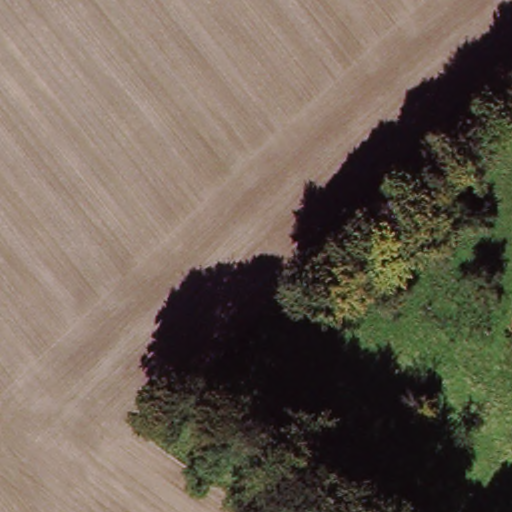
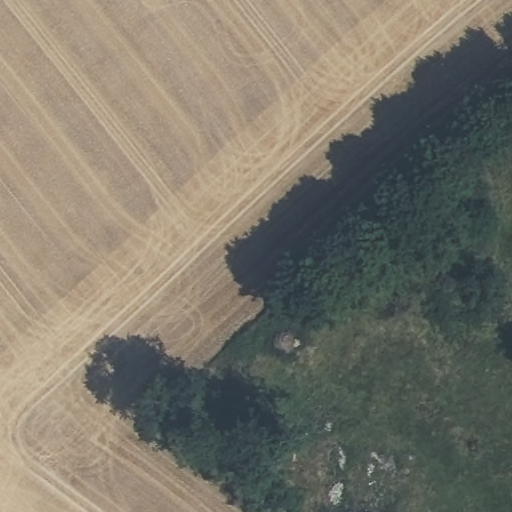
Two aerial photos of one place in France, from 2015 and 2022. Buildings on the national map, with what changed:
[]

